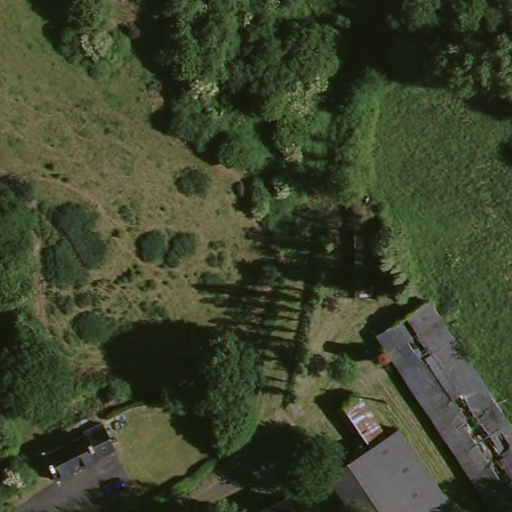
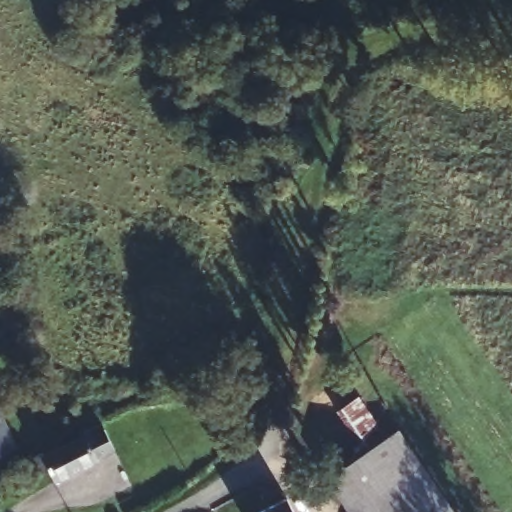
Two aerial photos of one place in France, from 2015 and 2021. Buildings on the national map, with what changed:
demolished [(375,340),(426,304),(512,428),(512,510),(510,512),(494,512),(375,340)]
unchanged [(395,427),(454,512),(344,512),(320,478),(370,447),(337,410),(362,390),(395,427)]
unchanged [(0,400),(0,396),(1,400),(0,400)]
unchanged [(72,446),(70,440),(94,427),(110,458),(47,490),(43,483),(35,486),(28,469),(72,446)]
unchanged [(293,512),(273,512),(290,506),(293,512)]

